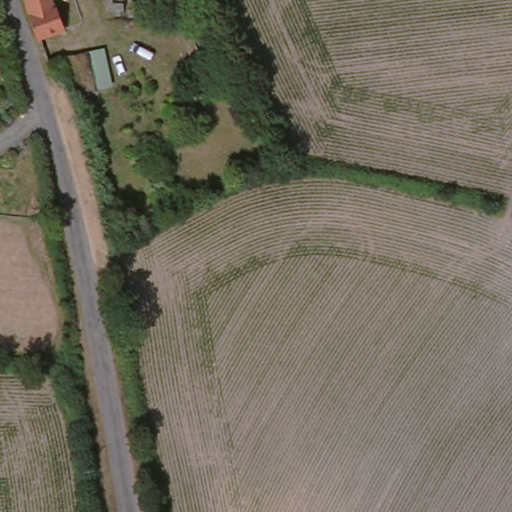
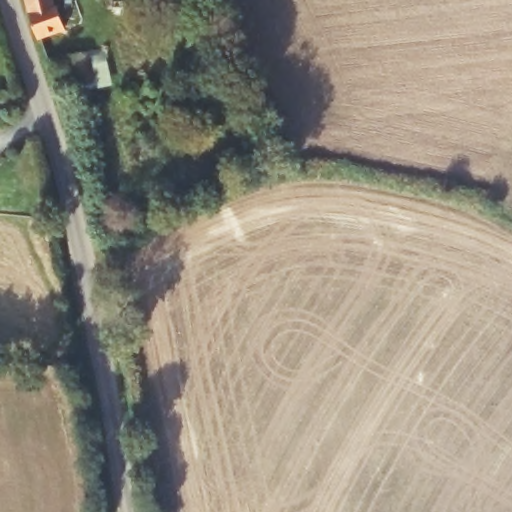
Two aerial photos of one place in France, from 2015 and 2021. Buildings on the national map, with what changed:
unchanged [(52,0),(55,7),(59,6),(68,33),(41,42),(28,0),(52,0)]
unchanged [(81,96),(70,57),(106,50),(116,90),(81,96)]

